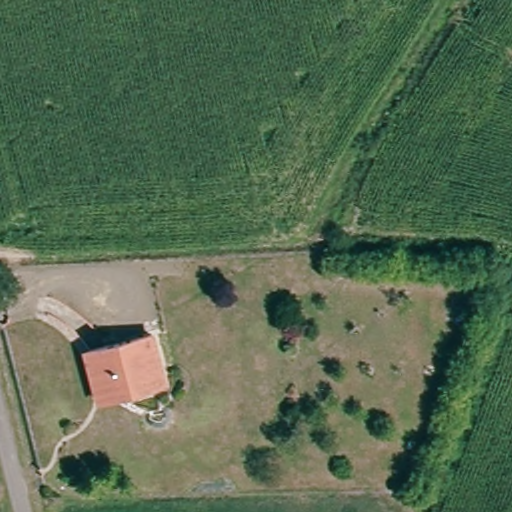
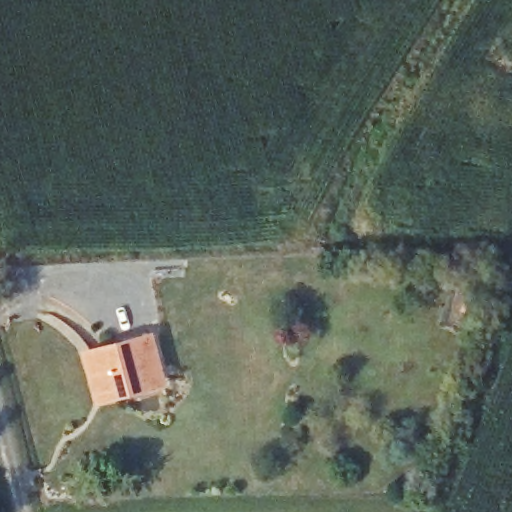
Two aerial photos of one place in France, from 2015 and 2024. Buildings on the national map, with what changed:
unchanged [(102,397),(100,388),(90,348),(156,329),(161,348),(169,379),(102,397)]

